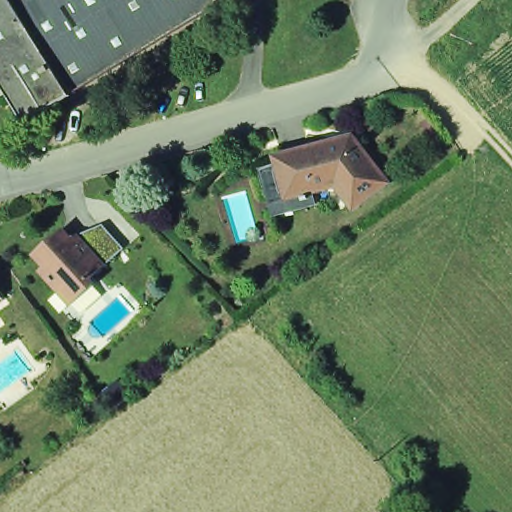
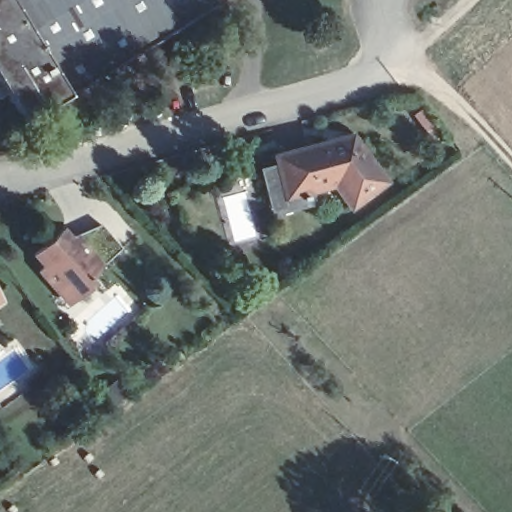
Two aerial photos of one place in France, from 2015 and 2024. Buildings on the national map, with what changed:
unchanged [(17,127),(0,100),(0,0),(3,0),(62,100),(17,127)]
unchanged [(214,10),(62,100),(3,0),(208,0),(214,10)]
unchanged [(347,135),(355,144),(382,181),(347,206),(330,183),(310,189),(311,191),(291,196),(279,190),(270,156),(332,139),(347,135)]
unchanged [(39,274),(44,270),(33,258),(50,243),(61,235),(69,243),(76,240),(81,247),(102,228),(123,252),(102,271),(88,283),(92,288),(75,303),(70,307),(58,295),(39,274)]

